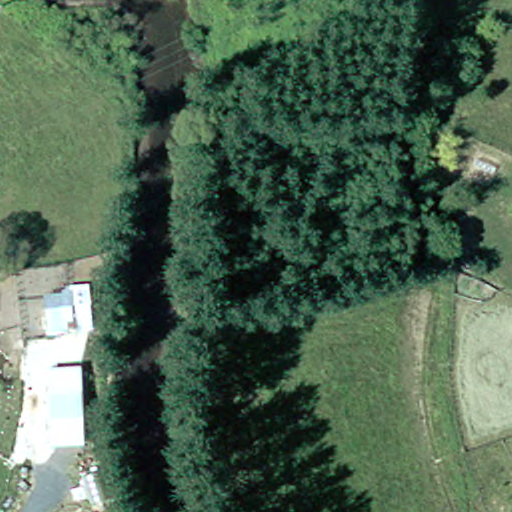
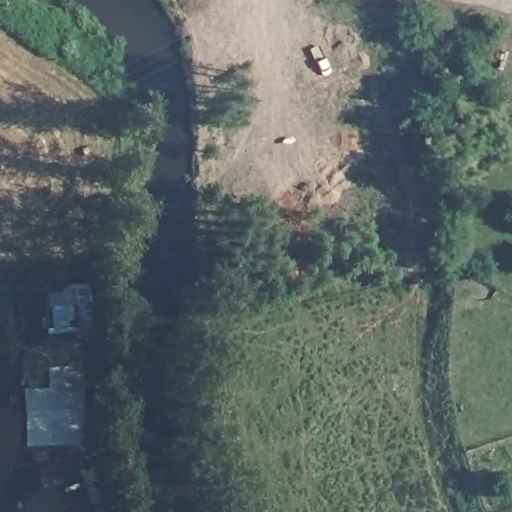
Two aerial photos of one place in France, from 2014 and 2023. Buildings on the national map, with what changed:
unchanged [(39,408),(69,406),(73,456),(43,457),(39,408)]

